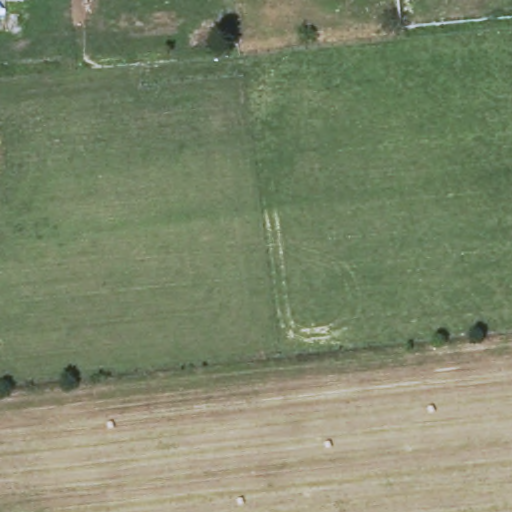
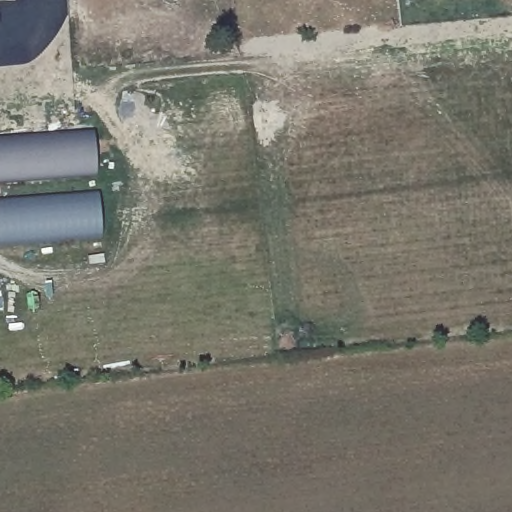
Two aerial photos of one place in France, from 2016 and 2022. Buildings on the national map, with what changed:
demolished [(28,1),(0,4),(0,0),(28,0),(28,1)]
new [(96,129),(101,175),(0,184),(0,137),(96,129)]
new [(102,190),(106,237),(1,247),(0,231),(0,199),(102,190)]

